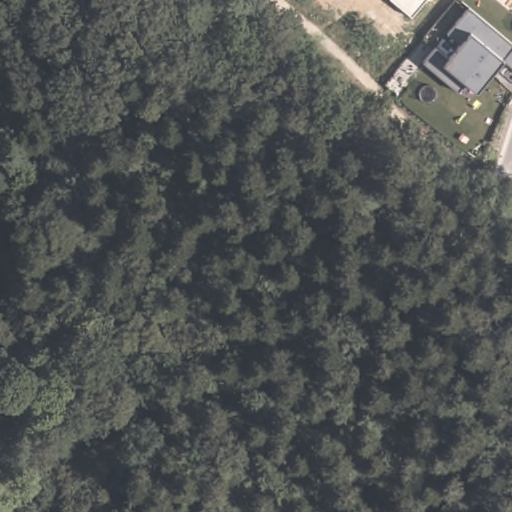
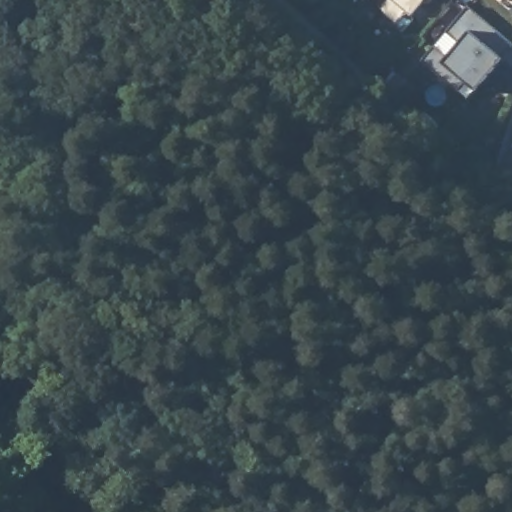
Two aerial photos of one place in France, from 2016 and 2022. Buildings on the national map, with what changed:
unchanged [(397,0),(424,0),(412,12),(397,0)]
unchanged [(503,59),(478,89),(467,80),(460,89),(423,58),(435,45),(449,57),(462,41),(448,29),(469,6),(512,41),(512,67),(503,59)]

